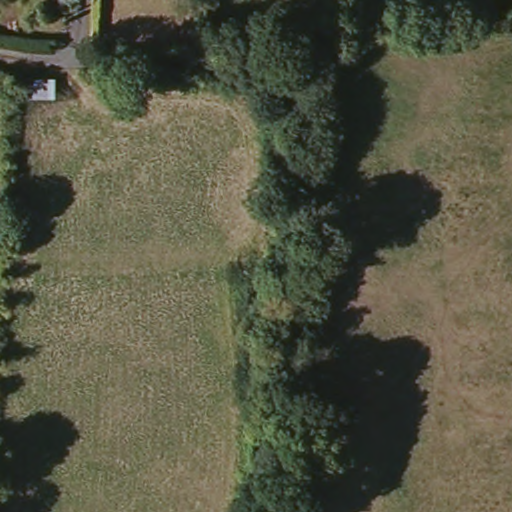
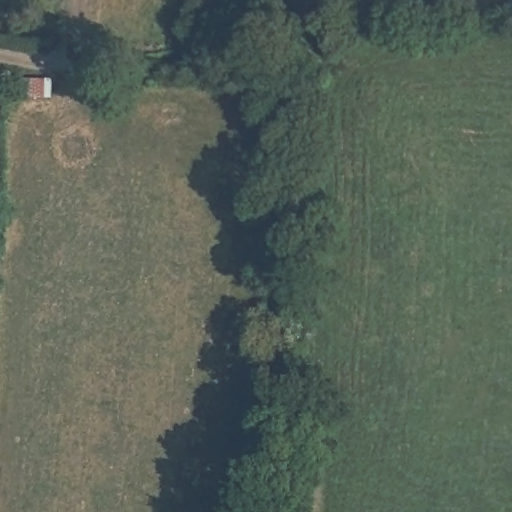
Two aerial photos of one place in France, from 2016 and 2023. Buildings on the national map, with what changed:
unchanged [(52,77),(52,101),(19,102),(17,79),(52,77)]

